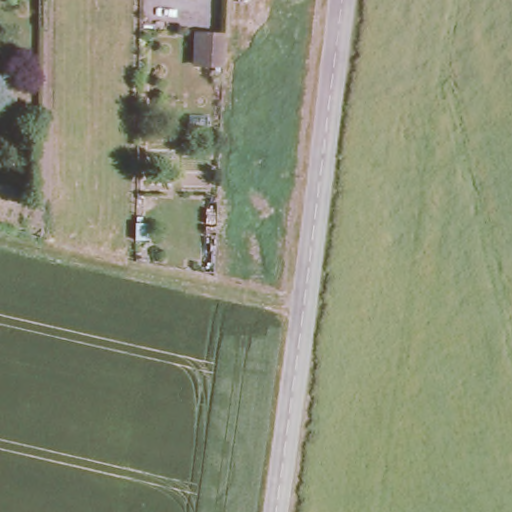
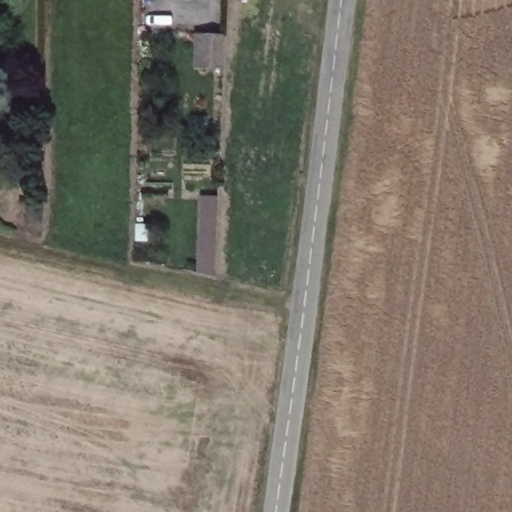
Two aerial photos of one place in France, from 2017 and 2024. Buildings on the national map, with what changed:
new [(200,196),(217,197),(213,275),(196,274),(200,196)]

